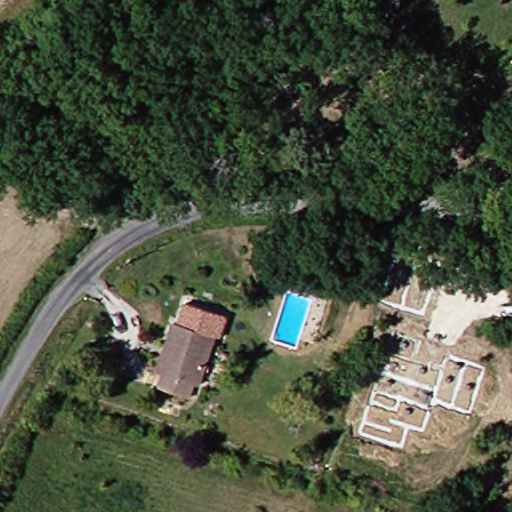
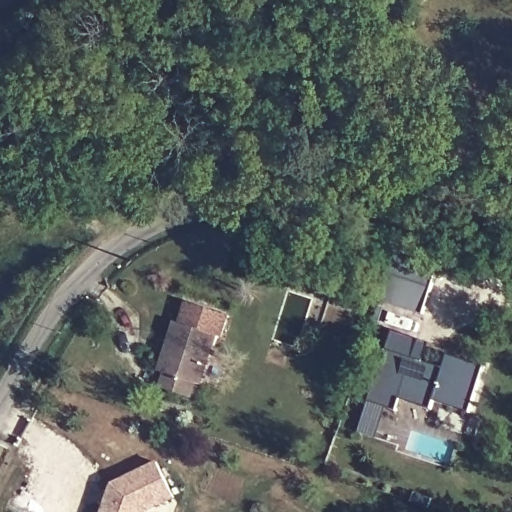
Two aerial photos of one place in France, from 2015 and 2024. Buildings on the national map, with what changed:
unchanged [(381,304),(399,247),(438,260),(422,316),(381,304)]
unchanged [(169,349),(176,325),(182,328),(189,302),(230,315),(222,339),(217,338),(205,383),(201,381),(193,403),(164,393),(168,379),(160,375),(169,349)]
new [(429,343),(423,362),(444,369),(448,356),(484,367),(469,413),(433,401),(431,409),(400,399),(396,411),(369,402),(386,349),(394,332),(429,343)]
new [(157,462),(176,500),(152,512),(103,512),(112,484),(157,462)]

